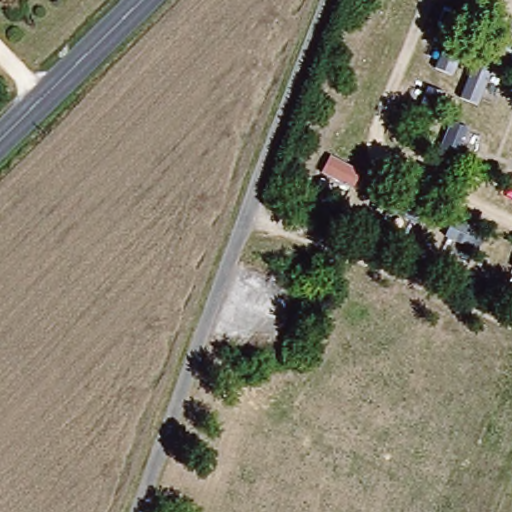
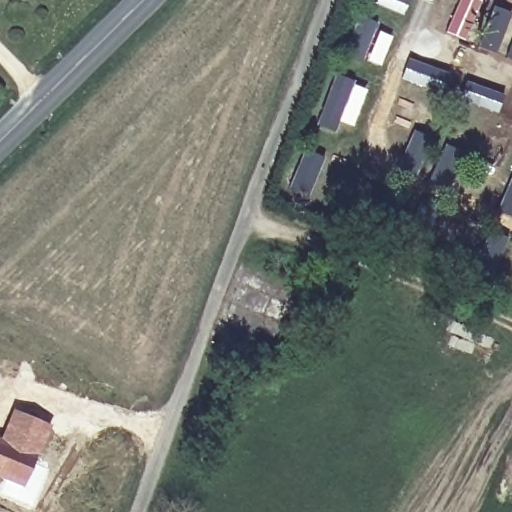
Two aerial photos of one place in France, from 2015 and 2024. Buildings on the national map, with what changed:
new [(51,425),(23,487),(0,477),(0,435),(13,408),(51,425)]

